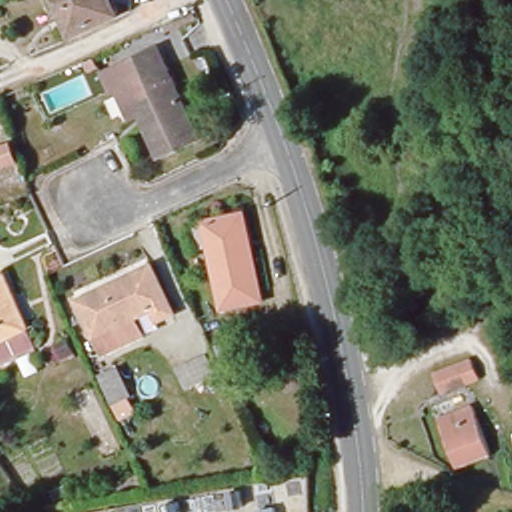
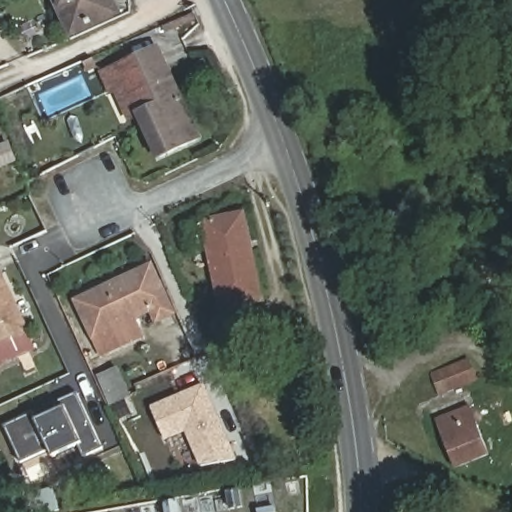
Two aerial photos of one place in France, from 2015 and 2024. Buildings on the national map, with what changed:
unchanged [(110,0),(116,12),(73,31),(58,0),(110,0)]
unchanged [(149,72),(122,86),(137,120),(123,126),(103,73),(162,47),(168,63),(149,72)]
unchanged [(149,72),(168,63),(201,140),(154,162),(137,120),(122,86),(149,72)]
unchanged [(23,164),(0,174),(0,145),(13,140),(23,164)]
unchanged [(223,308),(205,222),(237,214),(243,213),(251,248),(262,299),(223,308)]
unchanged [(102,352),(96,338),(78,301),(151,267),(172,311),(155,319),(152,313),(134,322),(140,334),(102,352)]
unchanged [(27,334),(0,347),(0,280),(1,279),(27,334)]
new [(98,375),(117,367),(129,397),(109,404),(98,375)]
unchanged [(455,388),(439,394),(431,374),(447,367),(455,388)]
demolished [(98,375),(110,369),(115,381),(103,387),(98,375)]
new [(204,384),(230,443),(199,457),(187,429),(166,438),(152,407),(204,384)]
new [(64,406),(61,399),(77,392),(102,447),(83,456),(78,444),(24,468),(4,425),(32,413),(35,420),(64,406)]
unchanged [(468,405),(488,455),(457,467),(438,417),(468,405)]
demolished [(431,500),(468,509),(467,512),(429,512),(431,500)]

